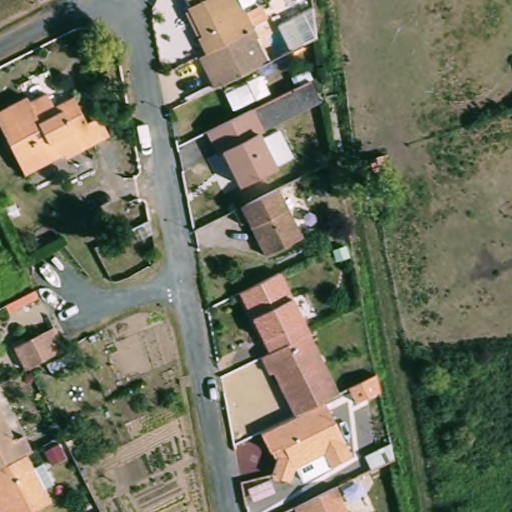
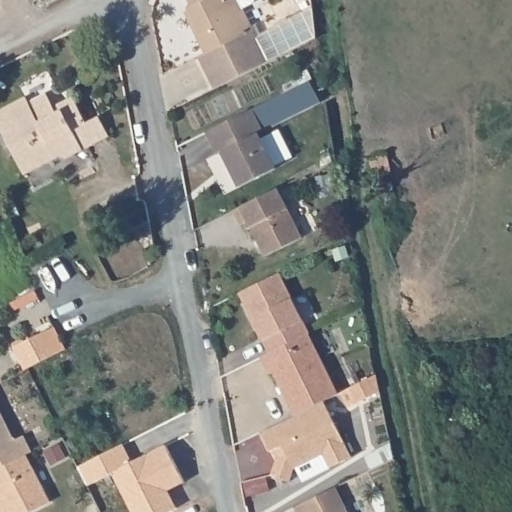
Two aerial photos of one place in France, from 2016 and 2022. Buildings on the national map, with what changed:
unchanged [(200,54),(180,0),(237,0),(251,31),(247,32),(200,54)]
unchanged [(247,32),(261,64),(206,87),(195,56),(200,54),(247,32)]
unchanged [(321,99),(258,130),(247,109),(318,74),(321,99)]
unchanged [(25,97),(42,89),(50,105),(70,95),(72,99),(83,119),(95,113),(105,131),(92,137),(61,154),(59,149),(52,152),(42,157),(25,165),(20,169),(0,129),(0,103),(2,101),(11,97),(21,92),(25,97)]
unchanged [(247,109),(258,130),(259,131),(254,134),(271,168),(236,185),(219,150),(215,152),(203,130),(247,109)]
unchanged [(276,184),(300,234),(264,251),(247,217),(240,220),(233,206),(276,184)]
unchanged [(284,272),(315,332),(312,333),(275,352),(245,292),(284,272)]
unchanged [(42,333),(54,356),(30,368),(27,370),(15,347),(42,333)]
unchanged [(275,373),(266,356),(275,352),(312,333),(343,394),(328,401),(301,415),(280,371),(275,373)]
unchanged [(353,453),(333,464),(327,452),(297,466),(293,479),(272,473),(276,457),(264,433),(301,415),(328,401),(353,453)]
unchanged [(20,435),(29,451),(23,454),(0,466),(0,418),(11,440),(20,435)]
new [(170,490),(177,507),(168,512),(134,512),(114,473),(90,485),(80,466),(125,445),(133,462),(166,445),(186,480),(170,490)]
unchanged [(47,501),(26,512),(0,512),(0,466),(23,454),(47,501)]
unchanged [(299,507),(340,487),(353,512),(301,512),(299,507)]

